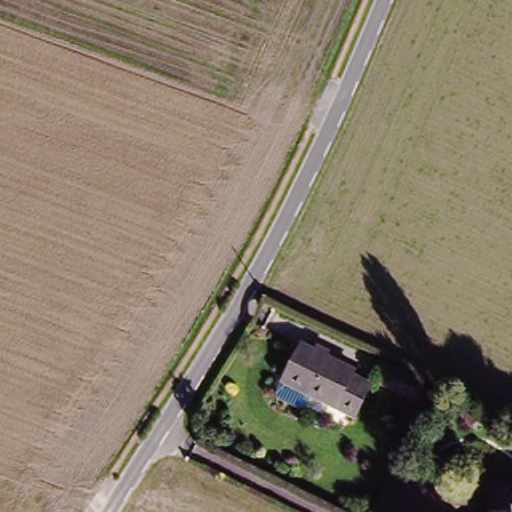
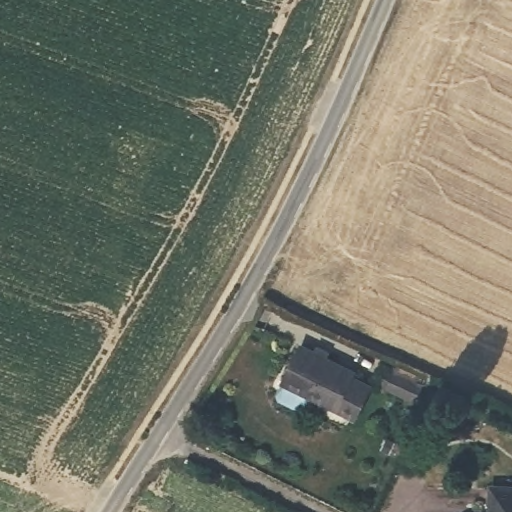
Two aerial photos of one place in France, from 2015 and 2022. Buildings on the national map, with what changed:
unchanged [(280,390),(299,353),(350,380),(348,385),(363,393),(348,424),(332,416),(280,390)]
unchanged [(411,412),(372,392),(381,374),(420,394),(411,412)]
unchanged [(490,487),(512,487),(512,512),(491,512),(490,487)]

